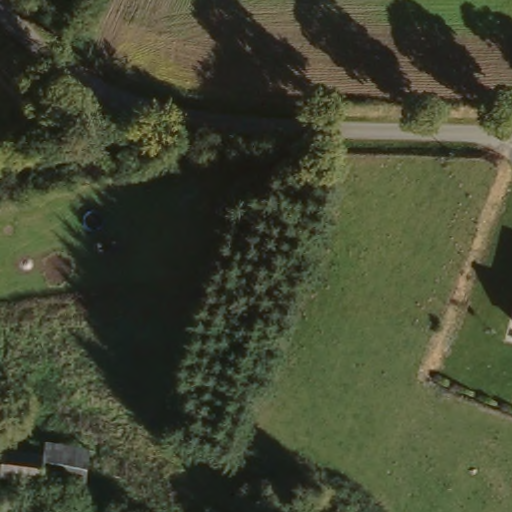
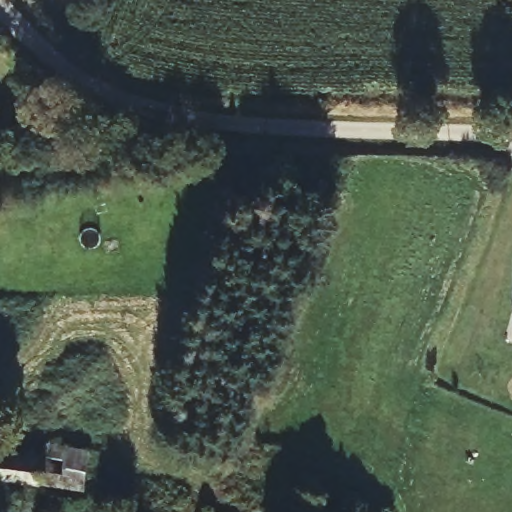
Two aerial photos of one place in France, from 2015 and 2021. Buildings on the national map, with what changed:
unchanged [(511,325),(512,322),(512,326),(511,325)]
unchanged [(40,449),(91,460),(83,498),(34,490),(38,460),(40,449)]
unchanged [(38,460),(34,490),(0,485),(0,458),(1,452),(38,460)]

